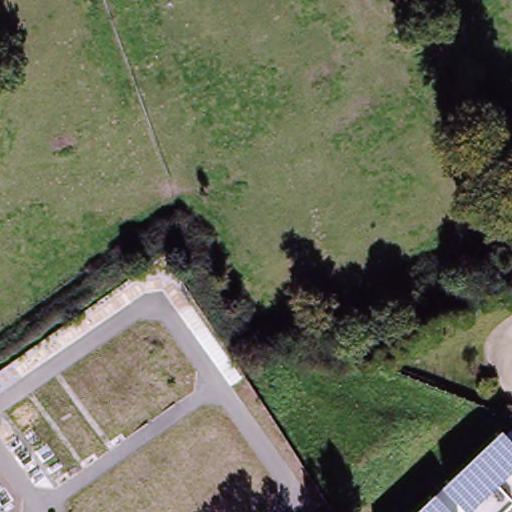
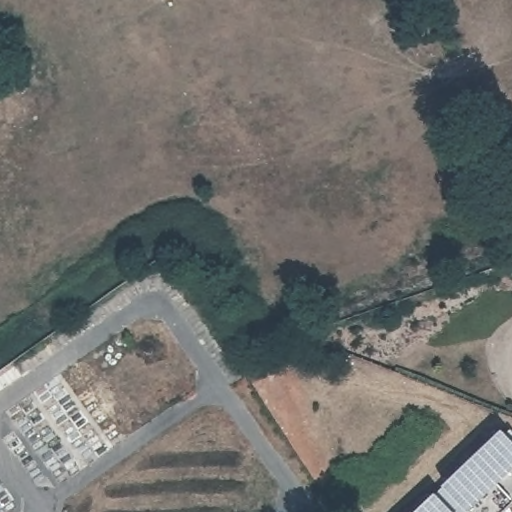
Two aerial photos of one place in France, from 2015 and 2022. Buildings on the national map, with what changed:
unchanged [(512,508),(508,512),(418,512),(503,430),(512,441),(512,508)]

